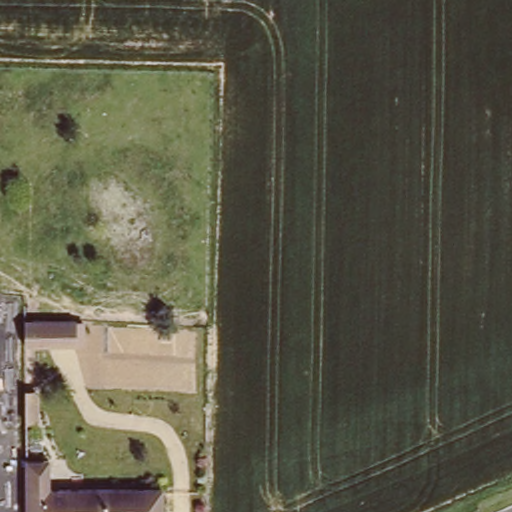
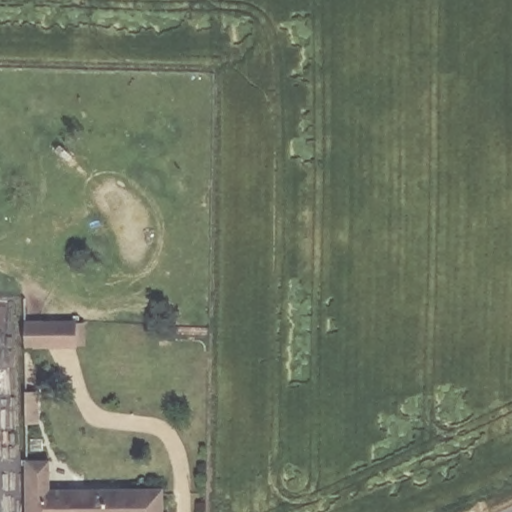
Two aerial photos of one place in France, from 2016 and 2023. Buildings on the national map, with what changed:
unchanged [(24,321),(80,321),(80,347),(24,347),(24,321)]
unchanged [(51,488),(162,491),(162,512),(24,512),(24,458),(50,459),(51,488)]

